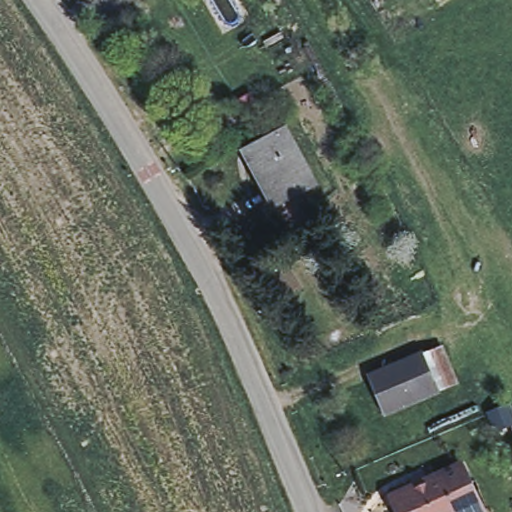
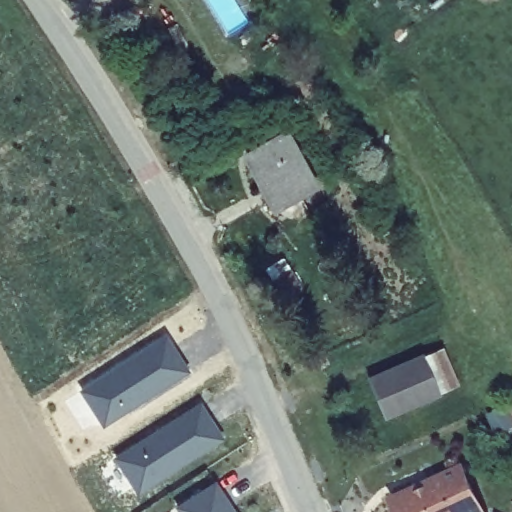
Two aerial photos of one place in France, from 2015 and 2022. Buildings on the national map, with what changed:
unchanged [(286,132),(314,184),(275,205),(246,153),(286,132)]
new [(168,332),(194,374),(105,426),(82,392),(168,332)]
unchanged [(368,379),(424,356),(443,347),(459,385),(440,393),(384,417),(368,379)]
new [(203,403),(226,441),(141,497),(118,459),(203,403)]
unchanged [(388,499),(456,468),(472,505),(475,512),(394,512),(388,499)]
new [(235,512),(181,512),(179,508),(216,481),(235,512)]

